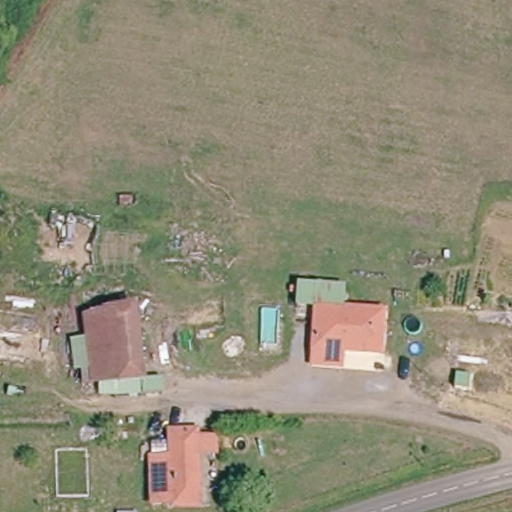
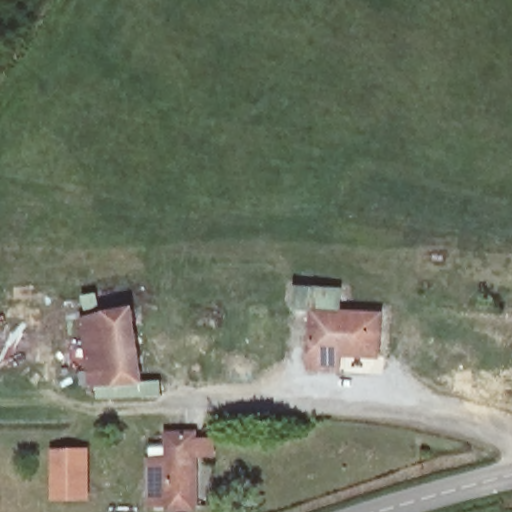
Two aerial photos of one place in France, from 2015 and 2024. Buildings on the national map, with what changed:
unchanged [(81,311),(128,304),(136,376),(86,376),(81,311)]
unchanged [(382,319),(378,357),(307,353),(310,315),(382,319)]
unchanged [(174,460),(174,439),(174,435),(197,435),(197,438),(197,505),(188,506),(187,512),(175,512),(175,508),(155,508),(156,460),(174,460)]
new [(54,500),(53,448),(91,449),(92,499),(54,500)]

